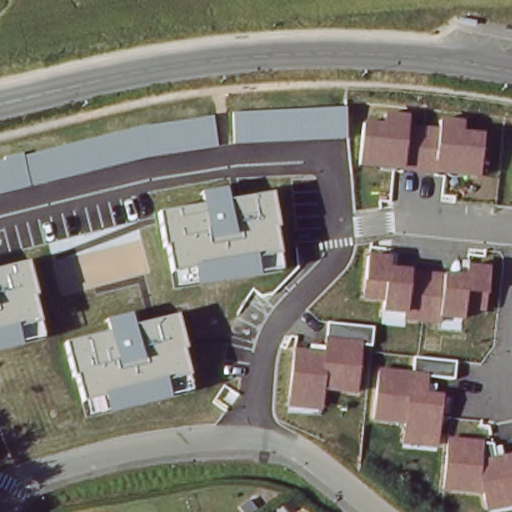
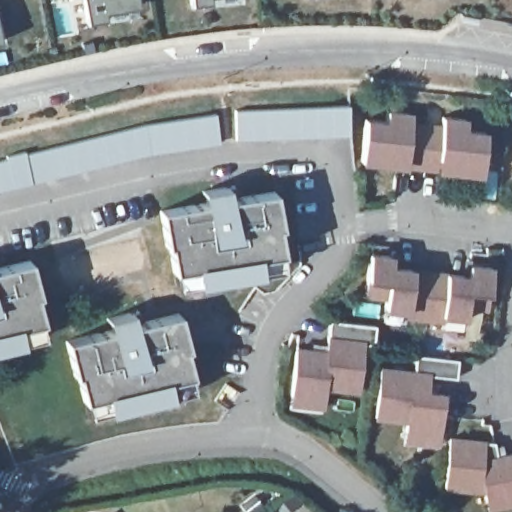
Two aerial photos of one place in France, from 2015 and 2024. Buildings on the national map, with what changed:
new [(108,20),(110,28),(92,31),(87,0),(139,0),(142,14),(108,20)]
new [(215,11),(199,12),(198,0),(225,0),(213,1),(215,11)]
unchanged [(236,111),(349,106),(350,136),(236,141),(236,111)]
unchanged [(387,121),(388,109),(466,116),(465,127),(485,130),(482,176),(360,162),(367,119),(387,121)]
unchanged [(143,124),(215,113),(220,146),(150,154),(0,190),(0,158),(27,151),(143,124)]
unchanged [(206,203),(205,192),(229,187),(232,198),(274,191),(281,229),(278,230),(285,271),(177,286),(170,246),(164,247),(162,211),(206,203)]
unchanged [(392,254),(392,265),(469,272),(470,257),(493,260),(487,308),(467,306),(465,318),(443,317),(442,323),(402,320),(403,313),(383,311),(385,299),(364,297),(370,251),(392,254)]
unchanged [(39,293),(35,295),(45,337),(0,348),(0,265),(30,258),(39,293)]
unchanged [(112,332),(108,318),(132,312),(135,325),(180,313),(189,350),(185,351),(195,389),(87,415),(77,373),(73,374),(67,342),(112,332)]
unchanged [(295,349),(310,350),(312,343),(326,344),(328,322),(375,326),(374,347),(365,346),(360,392),(327,388),(325,409),(290,406),(295,349)]
unchanged [(380,370),(413,372),(415,355),(460,358),(457,378),(432,377),(431,391),(443,392),(438,447),(402,445),(405,422),(373,418),(380,370)]
unchanged [(493,441),(497,456),(512,452),(512,507),(489,512),(485,492),(444,490),(447,437),(493,441)]
unchanged [(107,511),(107,512),(105,512),(107,511)]

